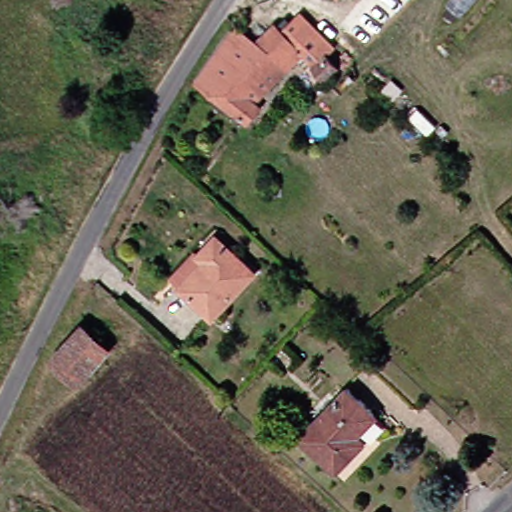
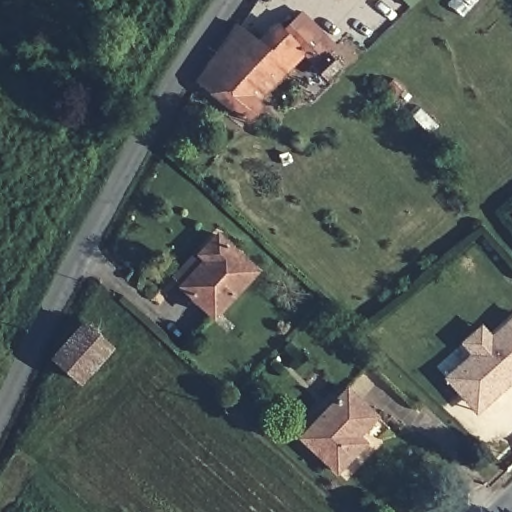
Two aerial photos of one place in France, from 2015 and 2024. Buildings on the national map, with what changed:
unchanged [(242,27),(261,39),(280,22),(287,31),(307,12),(341,51),(336,55),(337,56),(324,69),(315,58),(309,63),(302,57),(262,100),(267,106),(254,121),(207,80),(242,27)]
unchanged [(219,320),(187,290),(181,283),(204,258),(224,237),(261,273),(219,320)]
new [(448,378),(475,355),(465,343),(483,327),(493,338),(512,322),(512,383),(492,401),(478,413),(470,403),(448,378)]
unchanged [(89,326),(115,350),(84,385),(59,362),(89,326)]
unchanged [(348,388),(376,415),(357,435),(364,441),(337,470),(302,436),(348,388)]

